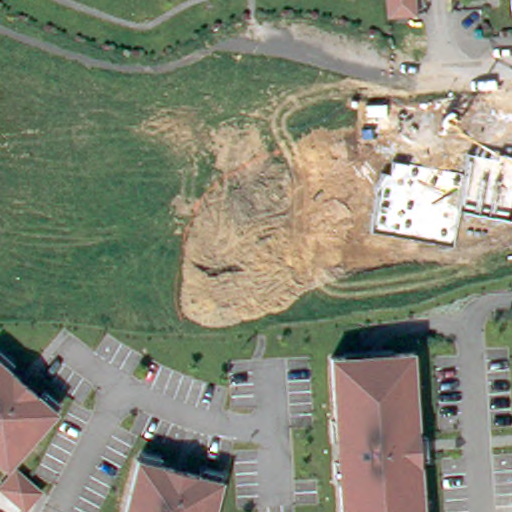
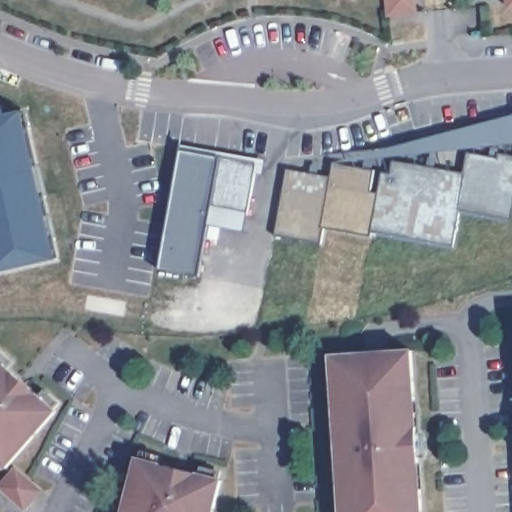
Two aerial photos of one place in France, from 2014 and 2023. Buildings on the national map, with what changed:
unchanged [(418,15),(385,17),(384,0),(417,0),(418,15)]
unchanged [(510,12),(510,0),(512,0),(512,11),(510,12)]
new [(5,117),(25,112),(25,113),(18,115),(22,129),(28,128),(37,167),(31,168),(37,197),(44,196),(49,217),(42,218),(47,240),(54,238),(58,260),(0,273),(0,106),(2,106),(5,117)]
new [(263,175),(255,174),(247,211),(244,232),(208,225),(200,277),(160,270),(182,150),(220,157),(220,153),(266,161),(263,175)]
unchanged [(391,173),(394,159),(467,172),(470,151),(512,158),(512,218),(462,208),(453,247),(370,232),(380,171),(391,173)]
new [(370,232),(325,226),(321,244),(277,235),(287,170),(330,178),(333,164),(380,171),(370,232)]
unchanged [(413,347),(423,512),(341,512),(330,352),(413,347)]
unchanged [(8,468),(0,461),(0,362),(59,412),(8,468)]
unchanged [(222,478),(212,512),(123,512),(138,458),(222,478)]
unchanged [(28,511),(2,489),(17,471),(43,491),(28,511)]

